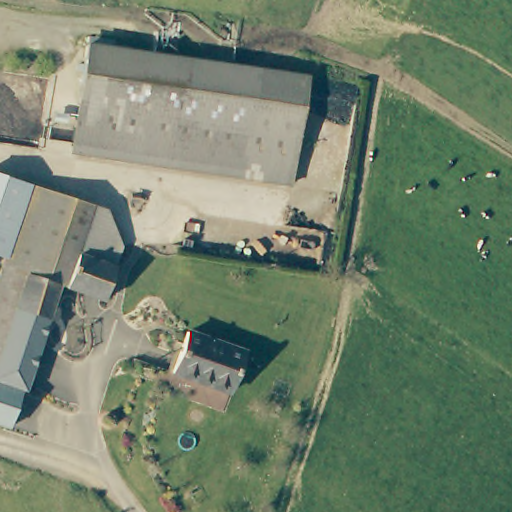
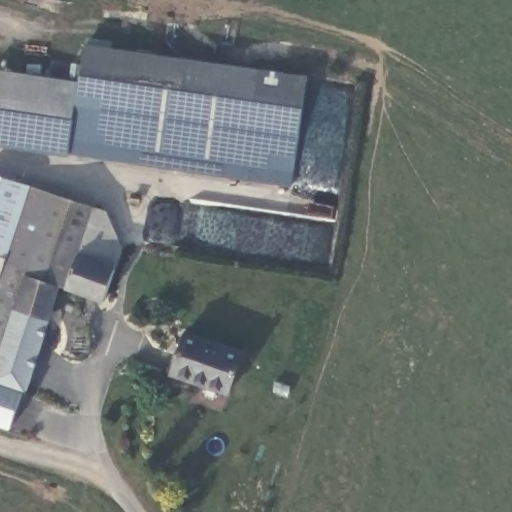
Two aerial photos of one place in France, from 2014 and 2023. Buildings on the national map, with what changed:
unchanged [(285,182),(71,146),(88,46),(308,82),(310,83),(293,183),(285,182)]
new [(69,157),(0,146),(0,69),(82,82),(71,146),(69,157)]
unchanged [(0,251),(0,173),(31,184),(7,253),(0,251)]
unchanged [(74,256),(63,287),(2,267),(7,253),(31,184),(92,203),(74,256)]
unchanged [(116,270),(106,300),(63,287),(74,256),(116,270)]
unchanged [(14,428),(0,423),(0,274),(2,267),(63,287),(14,428)]
unchanged [(187,332),(241,346),(227,389),(175,375),(187,332)]

